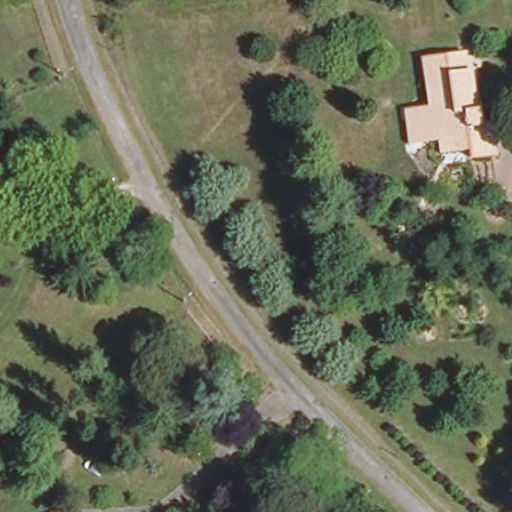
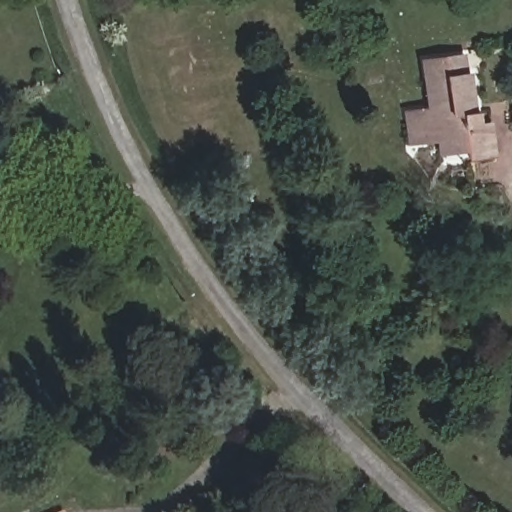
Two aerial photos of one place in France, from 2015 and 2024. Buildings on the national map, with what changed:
unchanged [(432,132),(416,136),(403,139),(399,106),(414,104),(430,100),(423,52),(455,47),(457,69),(461,68),(465,95),(473,95),(475,115),(482,113),(487,148),(464,153),(462,140),(434,149),(432,132)]
unchanged [(61,512),(56,512),(61,510),(61,512)]

